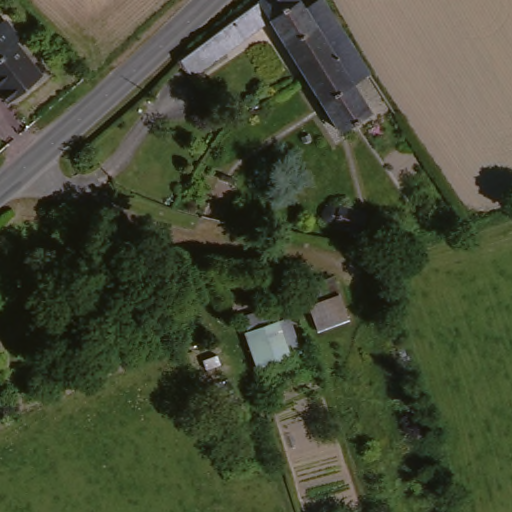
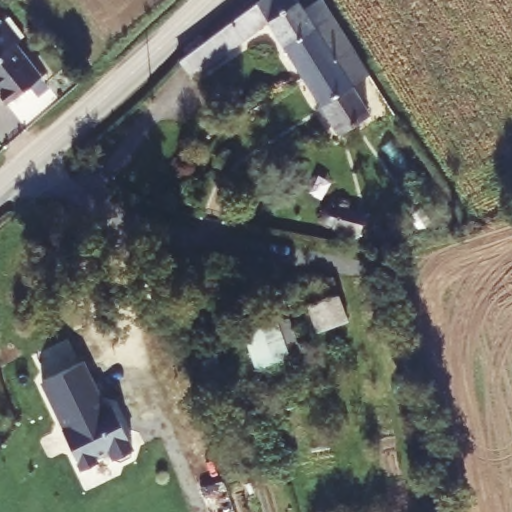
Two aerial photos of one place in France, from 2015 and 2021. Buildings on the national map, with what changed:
unchanged [(262,29),(184,84),(167,56),(243,0),(275,0),(283,13),(287,9),(318,55),(305,65),(295,72),(262,29)]
unchanged [(363,72),(382,98),(341,129),(295,72),(305,65),(318,55),(287,9),(303,0),(313,0),(363,72)]
unchanged [(0,91),(0,31),(13,23),(42,70),(5,99),(0,91)]
unchanged [(320,226),(325,199),(350,205),(347,216),(363,221),(360,236),(320,226)]
unchanged [(301,310),(332,301),(338,319),(310,332),(301,310)]
unchanged [(256,368),(250,329),(281,324),(287,363),(256,368)]
new [(84,358),(106,405),(113,402),(133,446),(131,453),(121,458),(114,455),(110,447),(96,453),(97,458),(82,465),(63,426),(66,425),(43,377),(84,358)]

